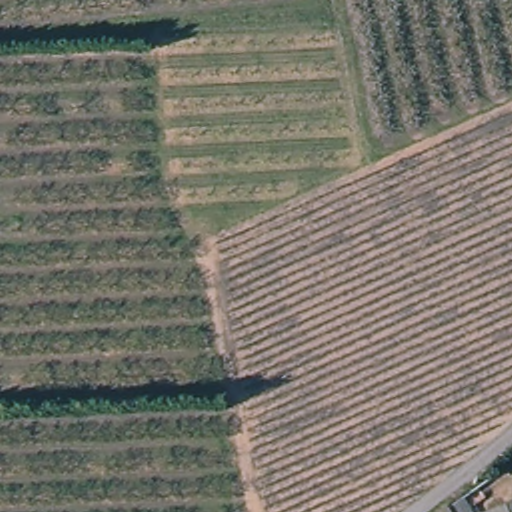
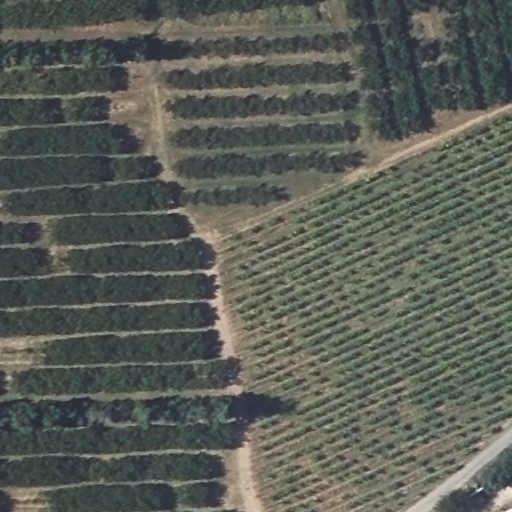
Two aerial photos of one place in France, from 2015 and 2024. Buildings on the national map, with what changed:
unchanged [(447,512),(439,512),(445,508),(447,512)]
unchanged [(502,512),(512,509),(512,512),(502,512)]

